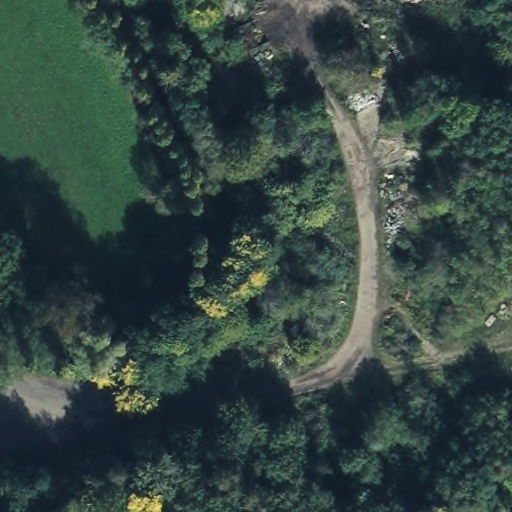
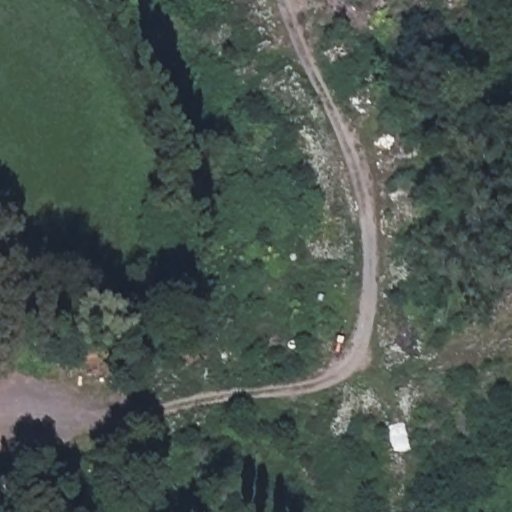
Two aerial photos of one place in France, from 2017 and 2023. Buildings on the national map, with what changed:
unchanged [(205,360),(179,378),(164,355),(189,337),(205,360)]

